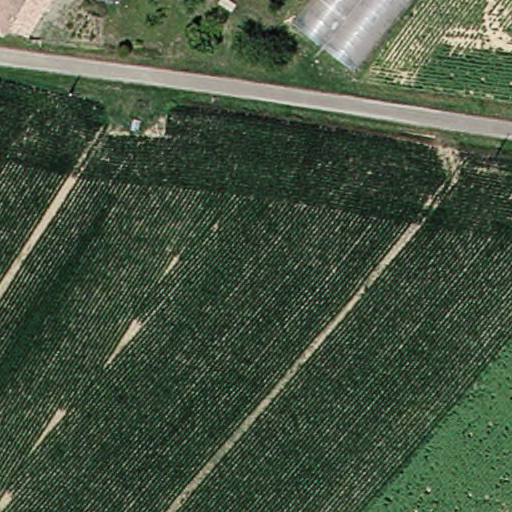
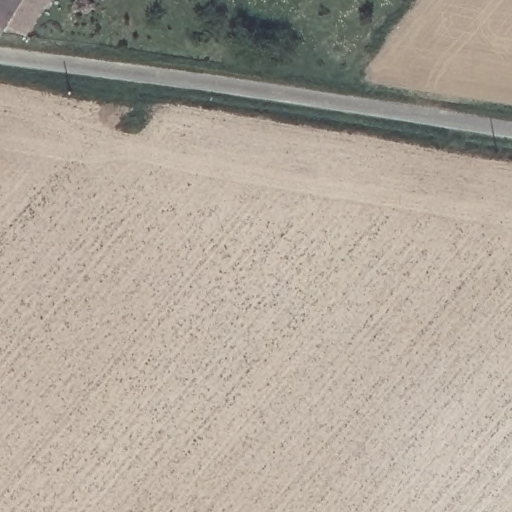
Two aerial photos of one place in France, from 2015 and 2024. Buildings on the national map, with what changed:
unchanged [(6,18),(0,24),(0,0),(45,0),(26,29),(6,18)]
demolished [(324,64),(280,31),(305,0),(400,0),(346,68),(331,56),(324,64)]

